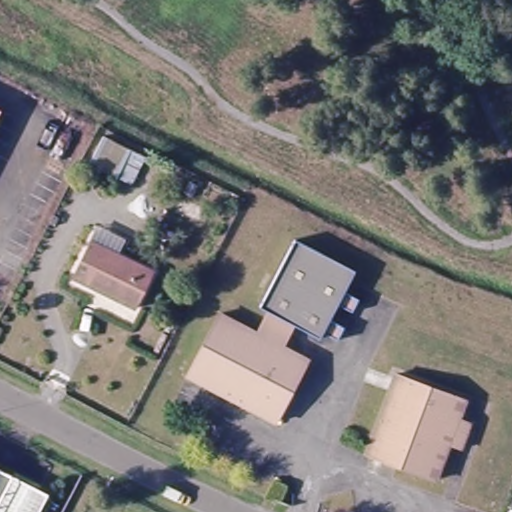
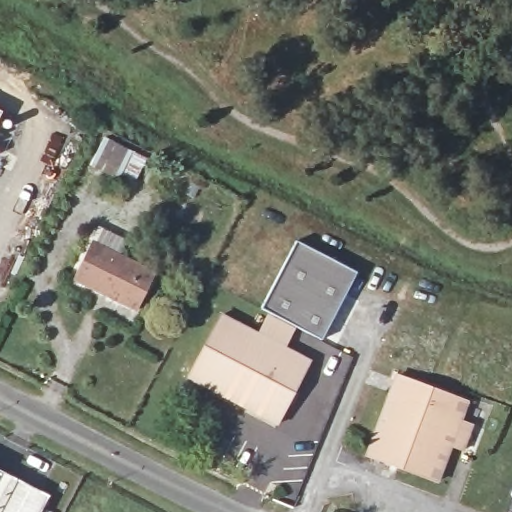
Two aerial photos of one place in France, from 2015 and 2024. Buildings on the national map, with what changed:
unchanged [(0,117),(0,108),(4,110),(0,117)]
unchanged [(131,184),(118,179),(118,180),(90,167),(105,138),(132,152),(145,157),(131,184)]
unchanged [(138,315),(73,281),(91,242),(99,228),(128,242),(120,257),(158,275),(138,315)]
unchanged [(355,278),(347,296),(362,303),(355,316),(340,308),(332,323),(348,332),(341,344),(326,337),(322,343),(262,312),(294,248),(355,278)]
unchanged [(281,429),(193,386),(224,323),(262,342),(272,322),(301,337),(291,357),(311,367),(281,429)]
unchanged [(449,443),(437,476),(369,452),(396,377),(464,401),(458,417),(472,422),(469,430),(463,448),(449,443)]
unchanged [(55,492),(45,512),(0,512),(0,465),(20,475),(55,492)]

